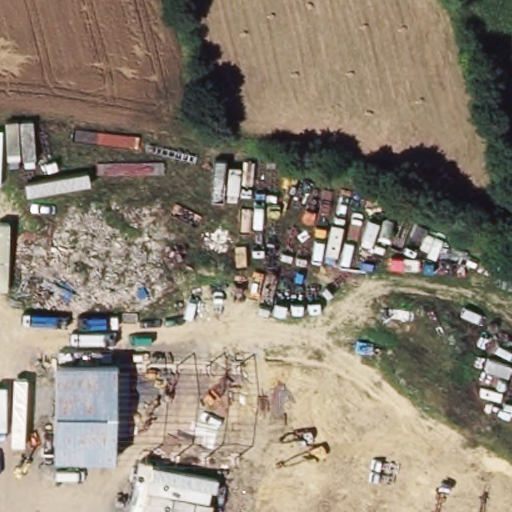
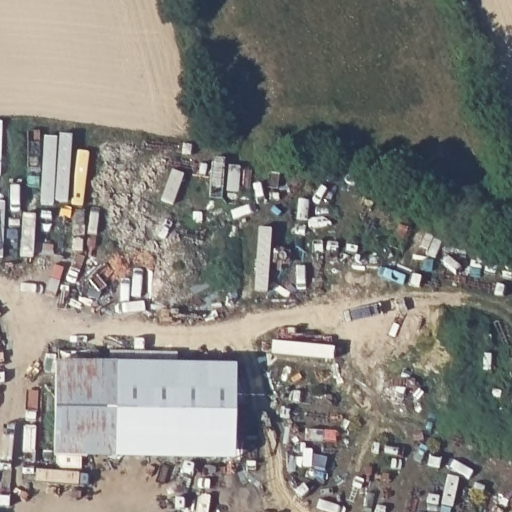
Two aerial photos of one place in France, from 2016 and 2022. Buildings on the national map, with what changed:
unchanged [(55,362),(117,363),(115,457),(55,456),(55,362)]
new [(237,365),(234,461),(115,457),(117,363),(237,365)]

